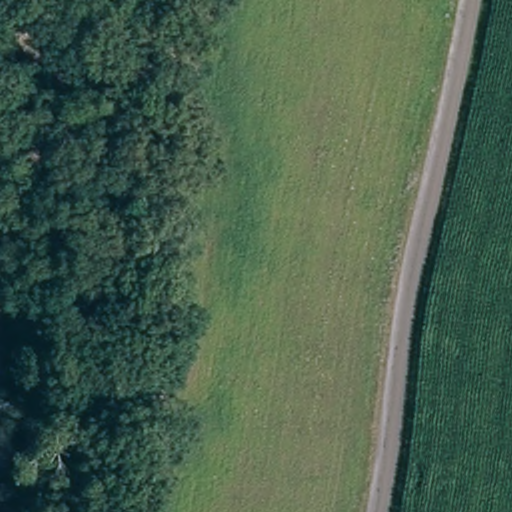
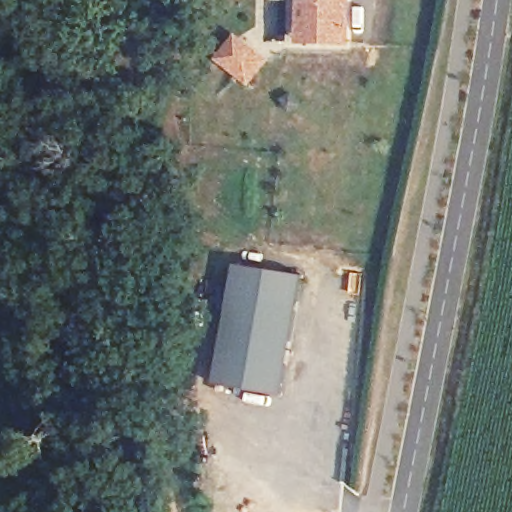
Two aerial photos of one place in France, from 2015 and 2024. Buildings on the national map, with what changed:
new [(295,43),(296,0),(351,0),(350,45),(295,43)]
new [(271,61),(248,87),(210,54),(232,31),(271,61)]
new [(303,275),(281,396),(216,385),(237,263),(303,275)]

